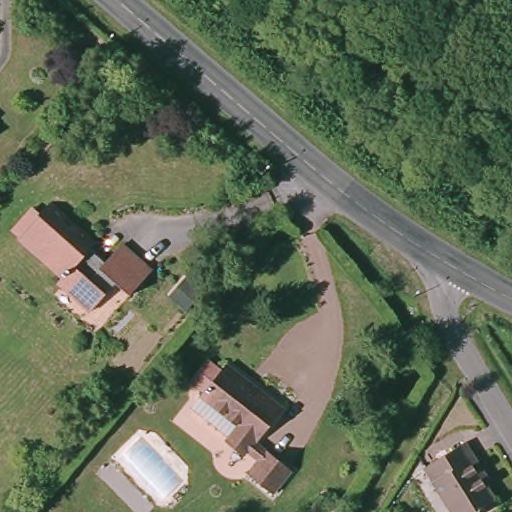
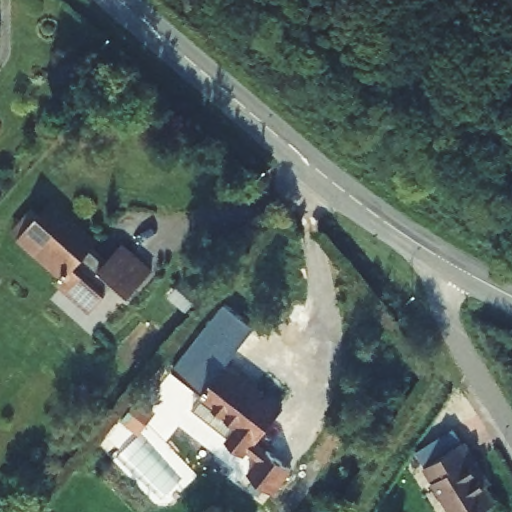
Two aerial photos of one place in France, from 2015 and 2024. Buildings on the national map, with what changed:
unchanged [(125,294),(105,275),(96,284),(103,293),(85,312),(50,279),(55,274),(11,233),(45,198),(91,241),(83,250),(98,263),(119,241),(149,269),(125,294)]
new [(256,328),(222,369),(219,366),(202,387),(175,366),(226,301),(256,328)]
unchanged [(295,467),(275,492),(250,474),(258,460),(226,437),(187,409),(196,396),(219,366),(277,409),(257,439),(295,467)]
unchanged [(461,439),(474,460),(469,464),(495,506),(485,512),(446,512),(417,467),(461,439)]

